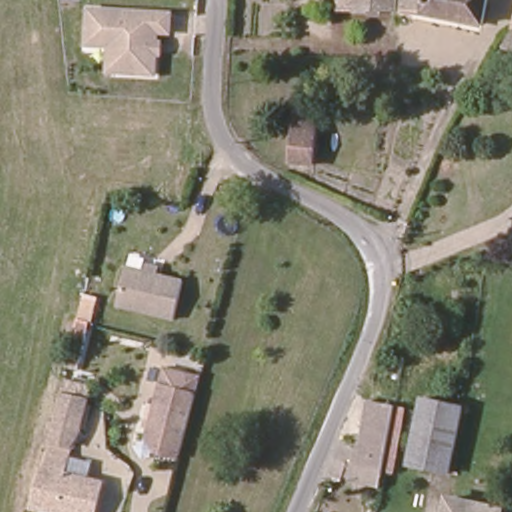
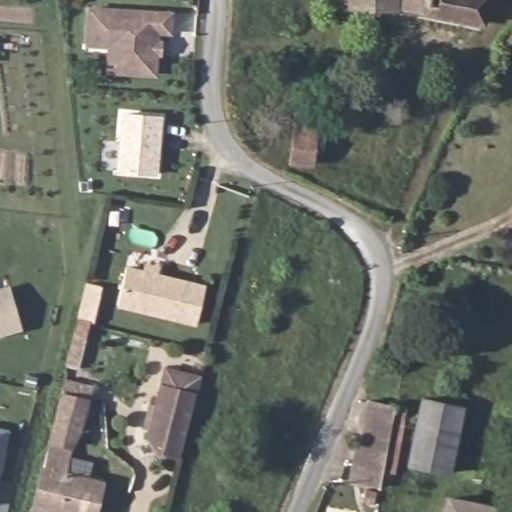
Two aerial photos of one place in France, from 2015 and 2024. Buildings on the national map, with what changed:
unchanged [(110,37),(91,35),(93,0),(173,8),(172,26),(160,25),(157,67),(124,64),(108,62),(110,37)]
unchanged [(337,6),(337,0),(395,0),(394,9),(337,6)]
unchanged [(488,24),(399,9),(401,0),(492,0),(488,24)]
unchanged [(512,32),(512,36),(511,35),(512,32)]
unchanged [(509,38),(512,39),(512,54),(505,52),(509,38)]
unchanged [(320,114),(314,163),(294,160),(300,110),(320,114)]
new [(157,177),(115,173),(121,112),(162,115),(157,177)]
unchanged [(184,282),(175,319),(120,305),(129,267),(184,282)]
new [(9,286),(22,331),(0,337),(0,289),(9,286)]
unchanged [(92,303),(90,314),(78,358),(69,354),(79,311),(82,300),(92,303)]
unchanged [(164,367),(165,365),(195,373),(194,374),(175,464),(152,458),(145,445),(164,367)]
unchanged [(83,405),(69,474),(105,484),(99,512),(40,512),(38,511),(63,400),(69,375),(88,380),(83,405)]
unchanged [(357,465),(361,442),(370,444),(376,403),(395,406),(385,470),(383,486),(356,482),(359,466),(357,465)]
unchanged [(465,409),(455,474),(416,468),(426,403),(465,409)]
new [(6,432),(0,469),(0,431),(6,432)]
unchanged [(502,512),(445,512),(447,495),(503,504),(502,512)]

